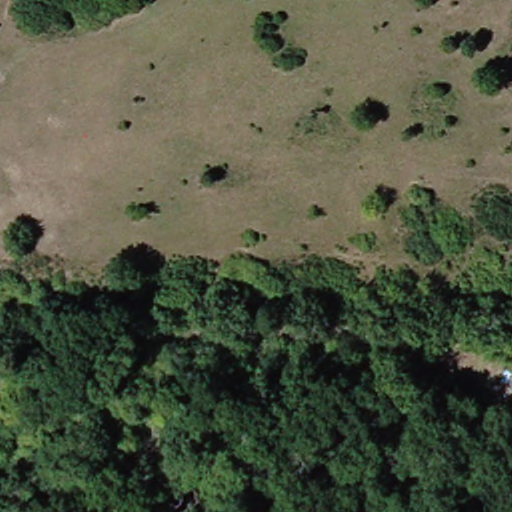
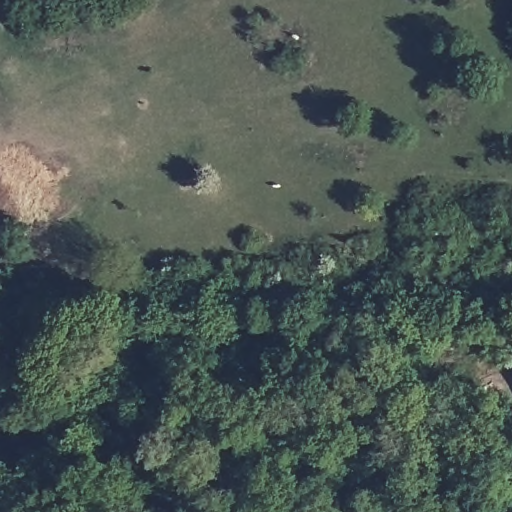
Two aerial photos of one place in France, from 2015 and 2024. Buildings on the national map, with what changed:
[]

